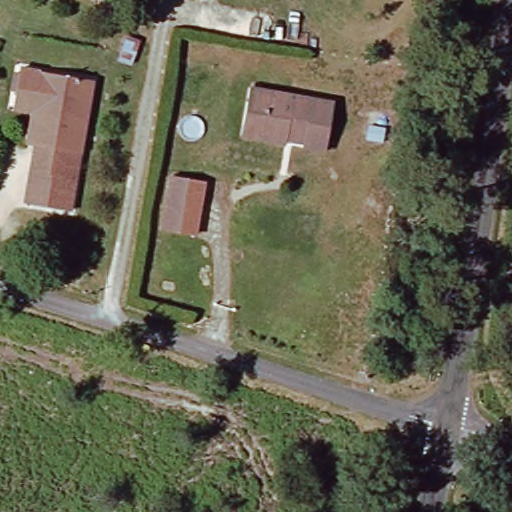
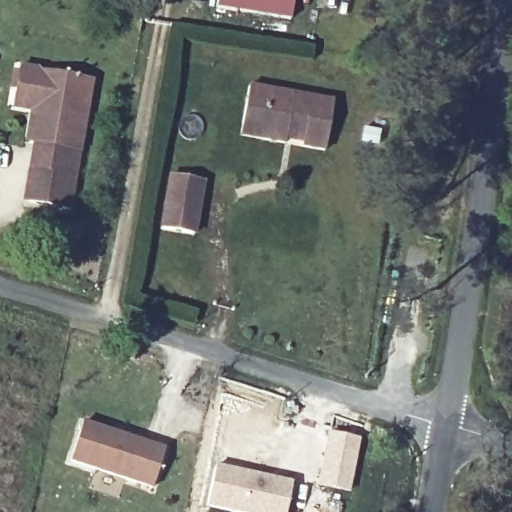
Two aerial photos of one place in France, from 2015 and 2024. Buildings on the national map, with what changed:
unchanged [(216,9),(217,0),(293,0),(290,20),(216,9)]
unchanged [(132,58),(140,34),(152,39),(147,61),(132,58)]
unchanged [(29,148),(33,116),(15,113),(17,101),(21,73),(94,85),(81,158),(76,182),(36,175),(41,150),(29,148)]
unchanged [(281,149),(259,145),(244,142),(246,130),(251,92),(332,108),(326,153),(308,151),(304,146),(297,145),(283,143),(281,149)]
unchanged [(409,125),(408,141),(386,137),(386,121),(409,125)]
unchanged [(76,182),(71,215),(30,208),(36,175),(76,182)]
unchanged [(165,232),(175,181),(206,187),(197,238),(165,232)]
new [(165,449),(154,490),(67,463),(81,422),(165,449)]
new [(327,432),(359,440),(348,493),(315,486),(327,432)]
new [(292,482),(285,512),(230,512),(206,507),(215,466),(292,482)]

